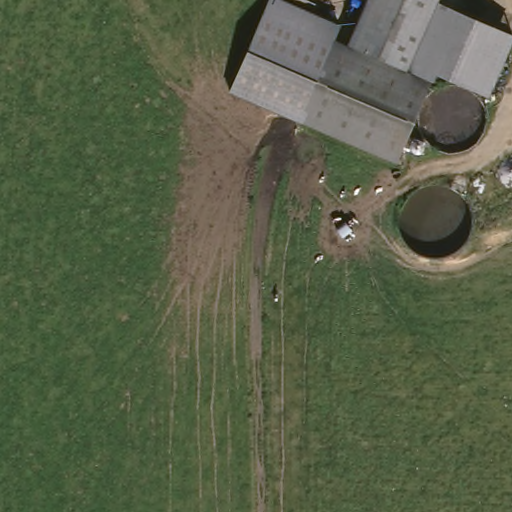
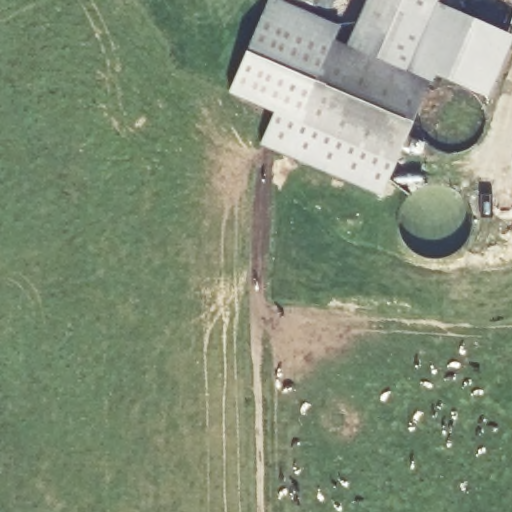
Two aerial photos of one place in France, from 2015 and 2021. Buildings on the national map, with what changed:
unchanged [(353,15),(363,21),(372,0),(441,0),(438,8),(412,66),(447,84),(412,164),(305,114),(343,34),(353,15)]
unchanged [(305,114),(297,126),(227,94),(271,2),(343,34),(305,114)]
unchanged [(412,66),(438,8),(512,37),(512,39),(485,97),(447,84),(412,66)]
new [(297,126),(305,114),(397,157),(382,196),(261,146),(275,115),(297,126)]

